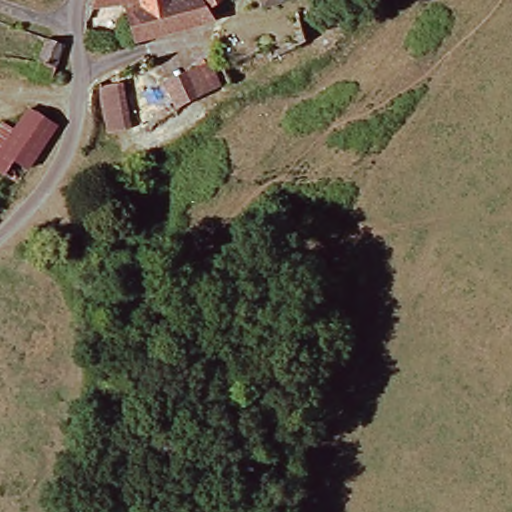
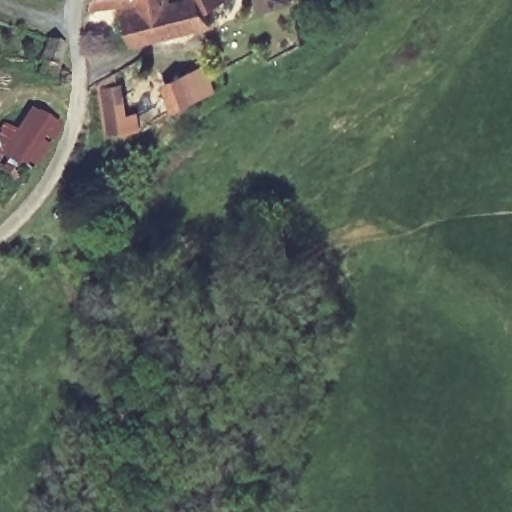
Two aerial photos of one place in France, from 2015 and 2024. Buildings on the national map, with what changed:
unchanged [(135,1),(97,11),(97,18),(82,20),(90,0),(167,0),(138,7),(135,1)]
unchanged [(204,5),(208,20),(193,22),(131,41),(123,13),(138,7),(167,0),(212,0),(204,5)]
unchanged [(64,56),(52,86),(36,80),(40,69),(37,67),(46,49),(64,56)]
unchanged [(217,89),(171,111),(161,89),(205,66),(217,89)]
unchanged [(108,125),(100,82),(115,71),(123,125),(108,125)]
unchanged [(50,126),(10,180),(0,172),(0,141),(25,107),(50,126)]

